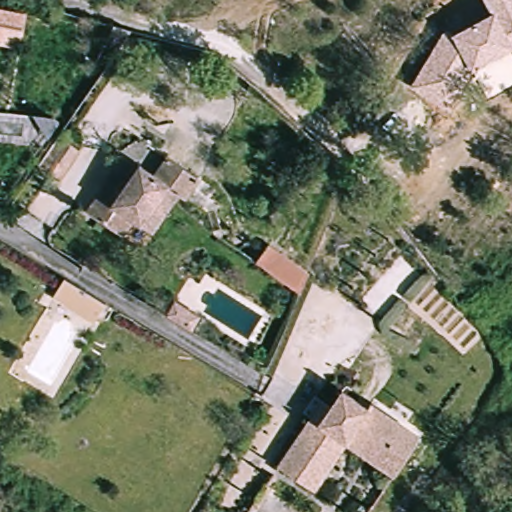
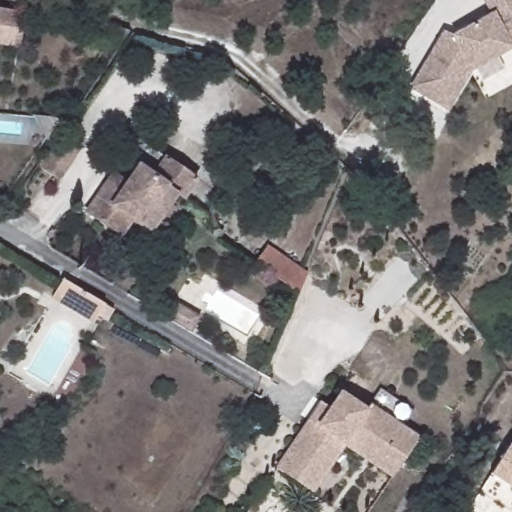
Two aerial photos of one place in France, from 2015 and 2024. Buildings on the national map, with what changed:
unchanged [(512,48),(470,71),(450,110),(411,86),(442,32),(452,34),(491,13),(483,0),(512,0),(512,49),(512,48)]
unchanged [(13,47),(0,45),(0,11),(20,15),(13,47)]
unchanged [(58,136),(78,151),(58,181),(37,166),(58,136)]
unchanged [(138,220),(131,216),(121,231),(85,206),(112,167),(125,177),(138,160),(152,169),(164,152),(196,174),(183,195),(175,190),(149,227),(138,220)]
unchanged [(266,241),(306,269),(298,288),(254,258),(266,241)]
unchanged [(63,280),(105,305),(95,321),(53,296),(63,280)]
unchanged [(198,317),(190,331),(165,316),(173,302),(198,317)]
unchanged [(367,408),(371,402),(420,434),(401,464),(344,427),(306,485),(278,467),(308,419),(319,402),(328,408),(340,390),(367,408)]
unchanged [(395,474),(346,443),(316,492),(306,485),(344,427),(401,464),(395,474)]
new [(490,474),(509,444),(512,447),(512,488),(490,474)]

